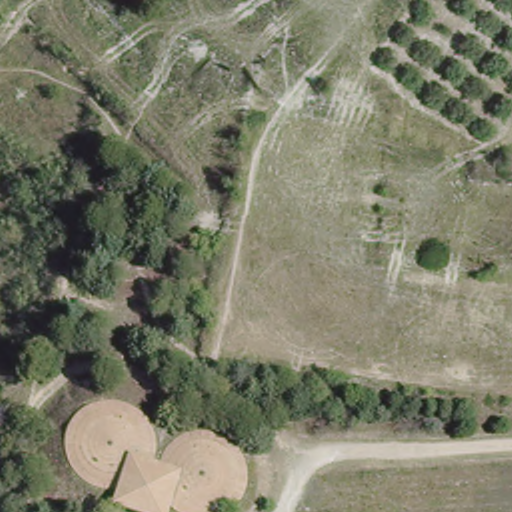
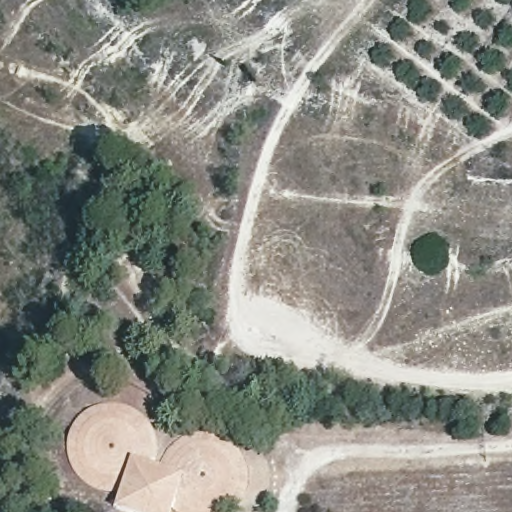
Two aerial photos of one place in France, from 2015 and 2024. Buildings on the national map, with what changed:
[]

